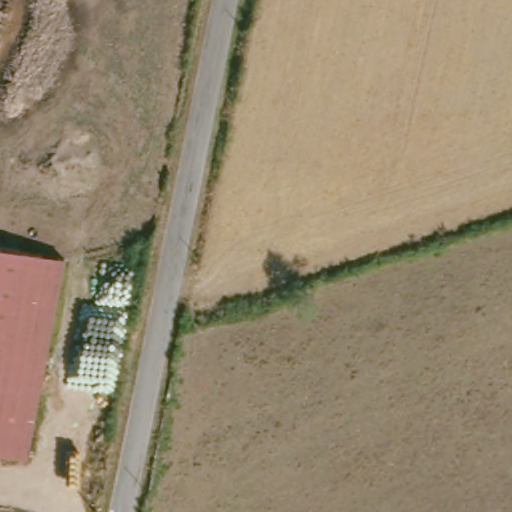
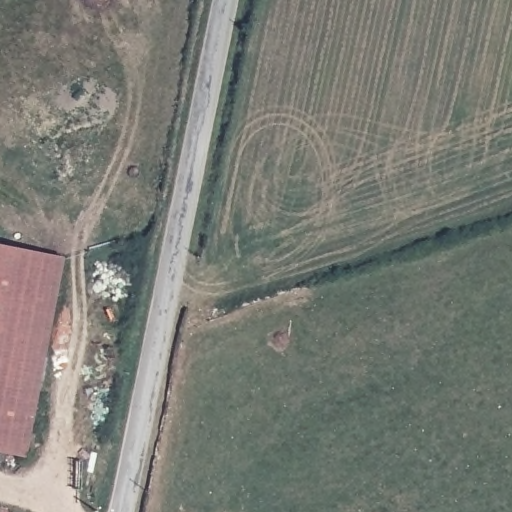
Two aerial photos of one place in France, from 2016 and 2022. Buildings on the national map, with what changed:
unchanged [(64,258),(32,460),(0,453),(0,246),(64,258)]

